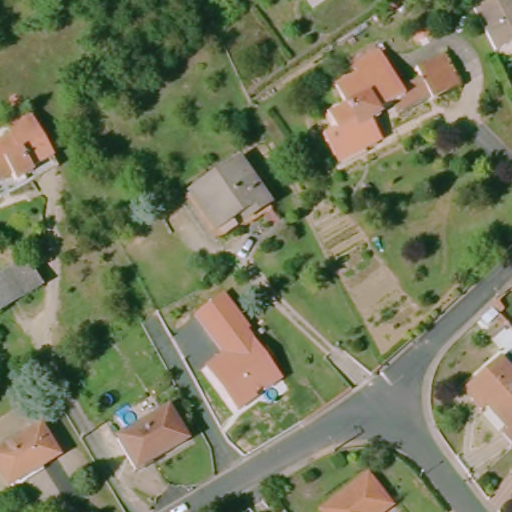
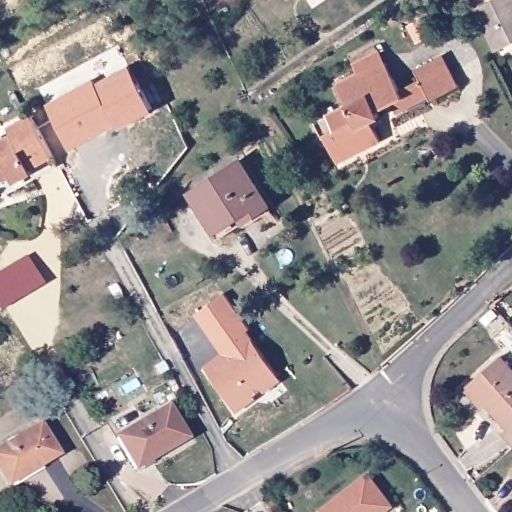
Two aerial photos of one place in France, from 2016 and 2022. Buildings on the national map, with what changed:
unchanged [(484,0),(508,0),(512,8),(512,40),(489,51),(468,8),(484,0)]
unchanged [(390,110),(384,98),(370,106),(371,111),(362,118),(372,136),(357,144),(353,139),(331,151),(319,130),(331,125),(322,110),(341,100),(330,79),(352,67),(348,57),(369,46),(376,58),(391,86),(411,78),(420,96),(390,110)]
unchanged [(414,76),(409,63),(434,49),(450,82),(420,96),(411,78),(414,76)]
new [(120,128),(118,123),(71,148),(48,105),(93,79),(96,83),(129,65),(154,111),(120,128)]
unchanged [(0,120),(23,108),(45,146),(51,157),(23,174),(0,187),(0,128),(2,126),(0,120)]
unchanged [(234,159),(264,203),(217,235),(214,236),(184,192),(194,185),(234,159)]
unchanged [(36,286),(0,307),(0,269),(20,258),(36,286)]
unchanged [(223,357),(196,318),(226,297),(251,332),(248,335),(283,384),(241,417),(206,370),(223,357)]
unchanged [(495,430),(499,426),(463,382),(496,354),(512,373),(512,443),(508,446),(495,430)]
unchanged [(130,472),(110,438),(163,409),(181,442),(130,472)]
unchanged [(0,447),(33,429),(49,457),(1,485),(0,483),(0,447)]
unchanged [(505,468),(512,462),(512,476),(505,468)]
unchanged [(313,510),(359,474),(383,504),(372,512),(315,512),(313,510)]

